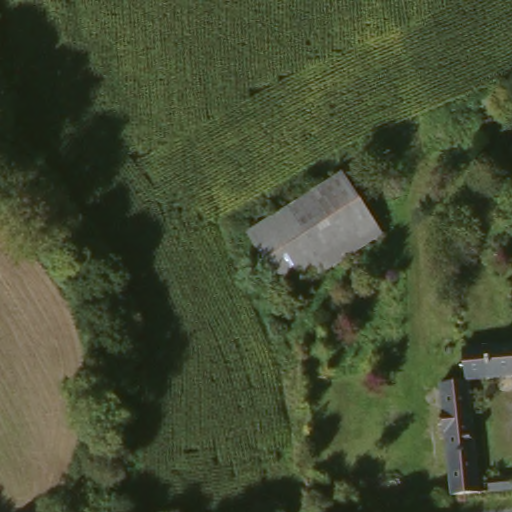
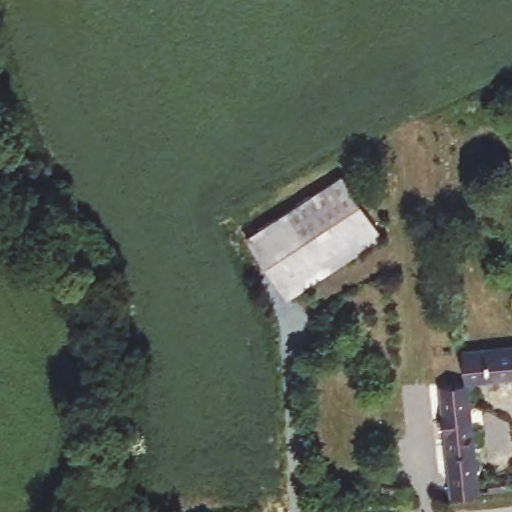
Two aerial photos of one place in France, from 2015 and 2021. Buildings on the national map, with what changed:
unchanged [(346,169),(384,231),(283,295),(280,290),(245,230),(346,169)]
unchanged [(468,340),(512,338),(512,373),(474,376),(467,376),(468,340)]
unchanged [(446,421),(448,377),(467,376),(474,376),(475,399),(476,470),(511,470),(511,487),(446,493),(446,421)]

